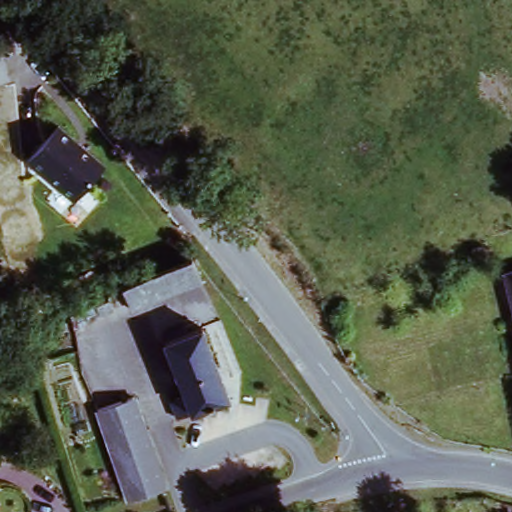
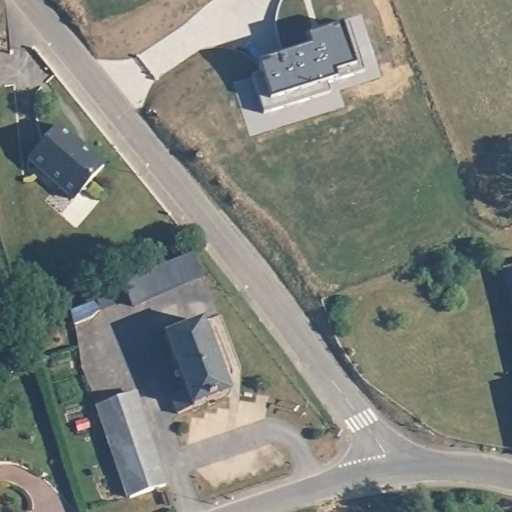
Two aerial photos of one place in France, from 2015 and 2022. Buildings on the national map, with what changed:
new [(341,27),(349,25),(366,74),(326,87),(329,95),(263,117),(251,79),(261,75),(259,67),(311,50),(307,39),(341,27)]
unchanged [(102,169),(68,198),(28,152),(61,122),(102,169)]
unchanged [(130,302),(122,275),(197,255),(204,284),(130,302)]
unchanged [(512,281),(512,297),(508,282),(512,281)]
unchanged [(85,311),(100,308),(102,317),(89,320),(85,311)]
unchanged [(173,397),(184,393),(165,343),(169,341),(168,332),(189,325),(190,325),(190,326),(193,332),(202,329),(214,360),(227,392),(229,398),(220,401),(180,416),(173,397)]
unchanged [(111,445),(96,407),(128,396),(143,433),(111,445)]
unchanged [(111,445),(143,433),(163,485),(132,497),(111,445)]

